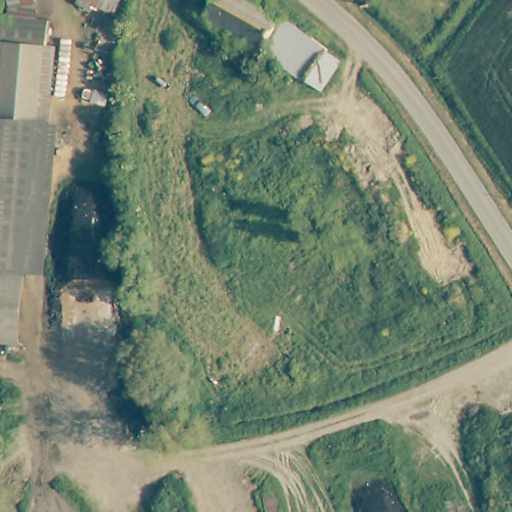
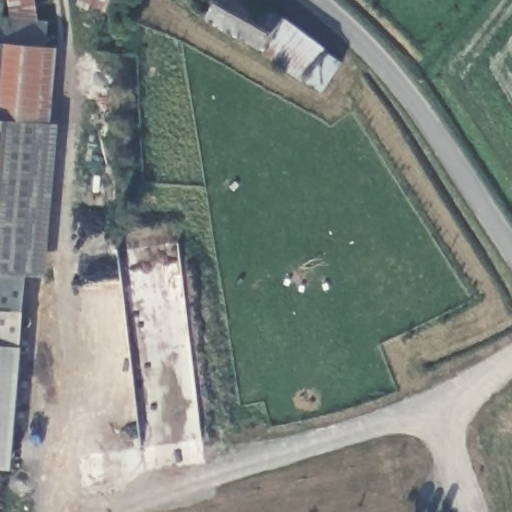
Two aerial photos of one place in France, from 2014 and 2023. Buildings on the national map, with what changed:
unchanged [(20,0),(47,0),(51,19),(43,138),(44,145),(31,309),(0,306),(0,0),(11,0),(10,14),(24,18),(20,0)]
unchanged [(127,18),(78,0),(131,0),(127,18)]
unchanged [(268,50),(194,9),(199,0),(262,0),(285,13),(289,16),(268,50)]
unchanged [(325,90),(312,81),(275,55),(268,50),(289,16),(334,49),(347,62),(325,90)]
unchanged [(29,336),(0,334),(0,306),(31,309),(29,336)]
new [(0,334),(23,336),(12,468),(0,467),(0,334)]

